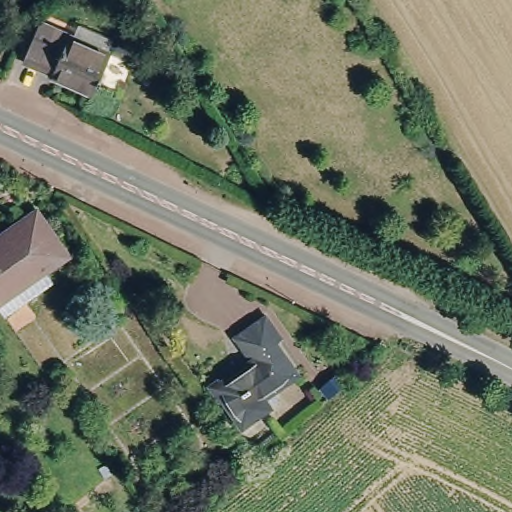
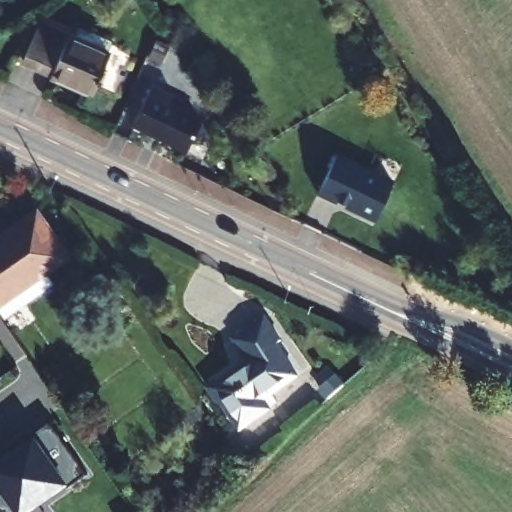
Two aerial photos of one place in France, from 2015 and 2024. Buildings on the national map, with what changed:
unchanged [(57,82),(60,76),(42,70),(26,64),(44,28),(57,34),(73,41),(80,25),(120,41),(115,55),(99,96),(57,82)]
new [(130,128),(146,87),(171,99),(168,105),(196,120),(198,125),(185,155),(130,128)]
new [(336,154),(391,182),(372,225),(316,196),(336,154)]
unchanged [(16,292),(23,304),(5,319),(0,311),(0,234),(33,211),(65,256),(16,292)]
unchanged [(236,338),(256,324),(292,374),(259,398),(267,408),(237,429),(209,387),(250,357),(236,338)]
unchanged [(336,370),(346,382),(331,394),(321,383),(336,370)]
new [(88,476),(38,512),(0,512),(0,464),(52,425),(88,476)]

